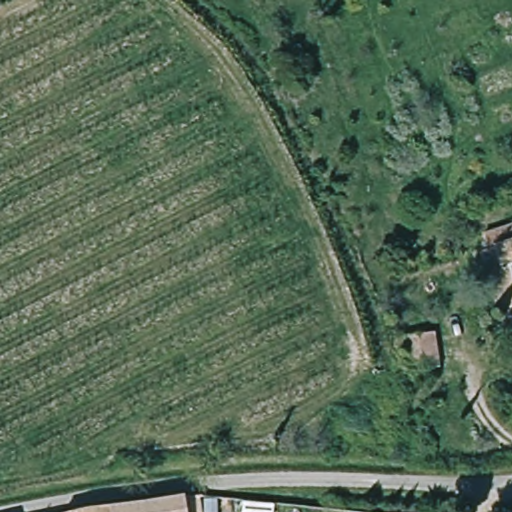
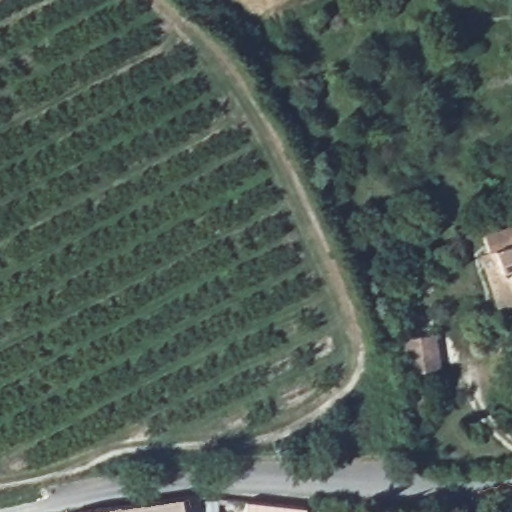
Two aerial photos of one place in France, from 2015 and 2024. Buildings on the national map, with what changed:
unchanged [(480,245),(487,242),(484,229),(512,222),(512,301),(494,305),(480,245)]
unchanged [(409,338),(439,336),(441,372),(411,373),(409,338)]
unchanged [(137,505),(203,495),(218,494),(218,495),(221,512),(94,512),(137,505)]
unchanged [(235,497),(274,496),(276,511),(276,512),(236,512),(234,497),(235,497)]

